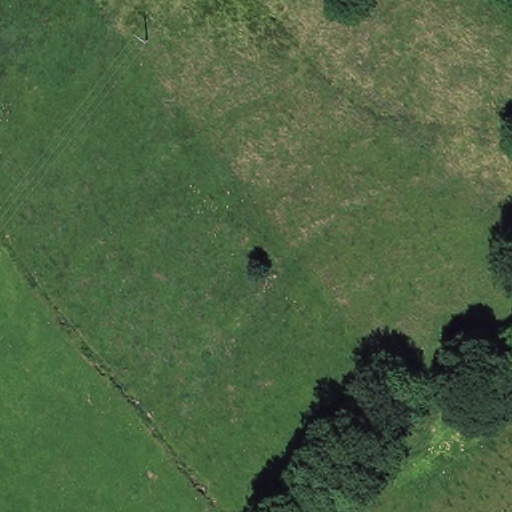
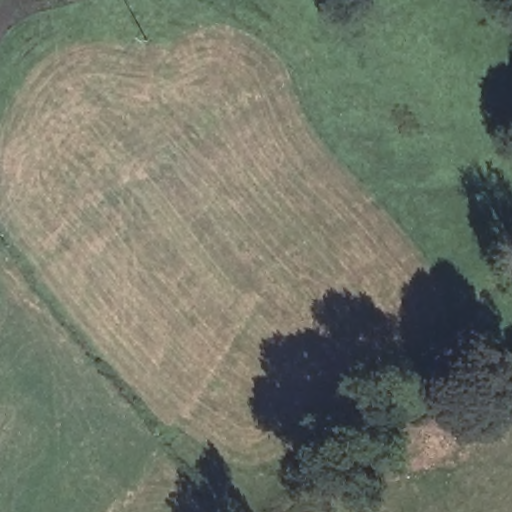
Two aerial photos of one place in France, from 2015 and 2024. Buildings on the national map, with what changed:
[]

